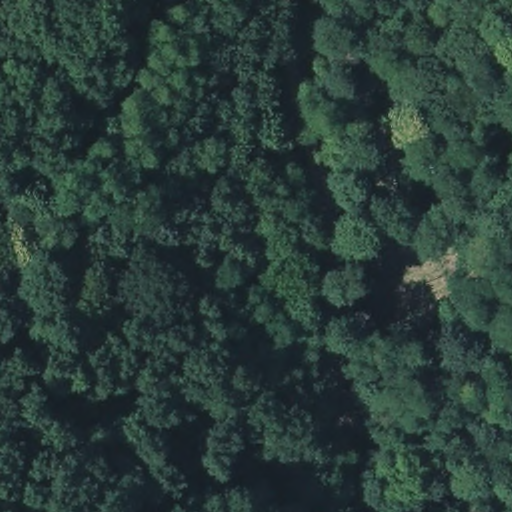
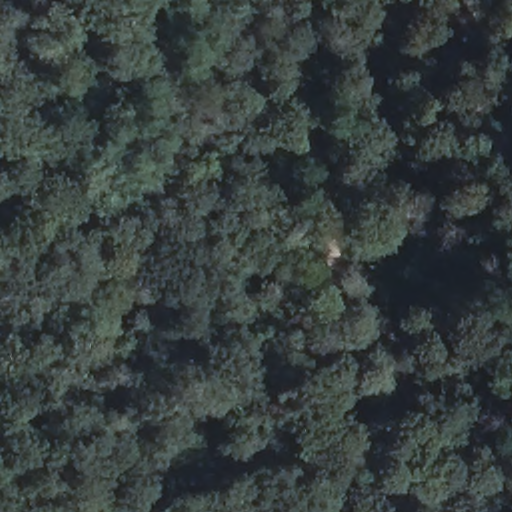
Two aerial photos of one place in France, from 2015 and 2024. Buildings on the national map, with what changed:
unchanged [(325,55),(323,37),(348,35),(346,47),(348,53),(325,55)]

